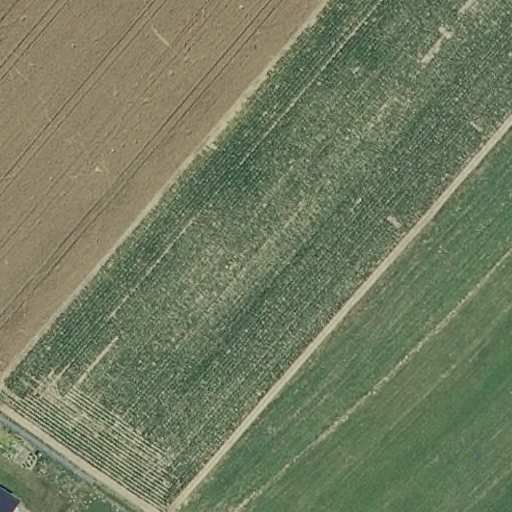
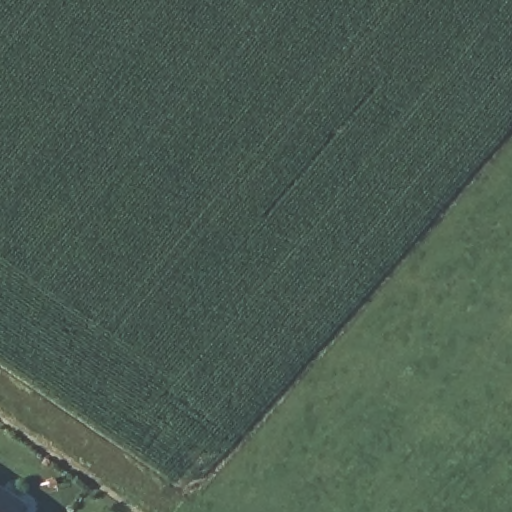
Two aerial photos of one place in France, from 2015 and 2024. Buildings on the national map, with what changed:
unchanged [(0,487),(18,498),(15,502),(9,512),(0,512),(0,486),(0,487)]

